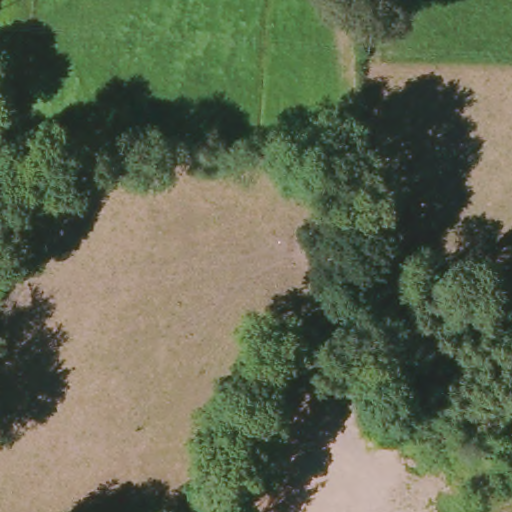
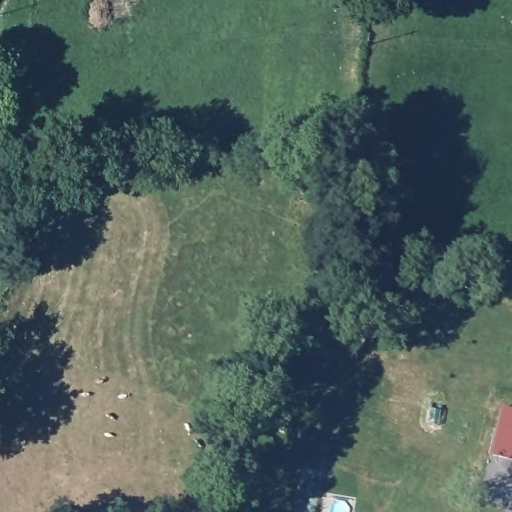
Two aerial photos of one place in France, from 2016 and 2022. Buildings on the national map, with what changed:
new [(491,454),(502,407),(512,409),(512,459),(491,454)]

